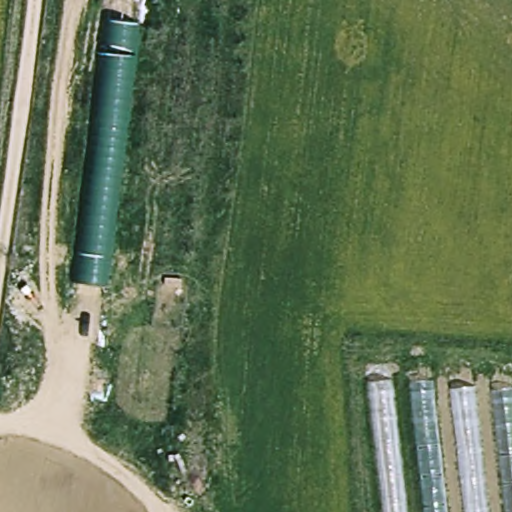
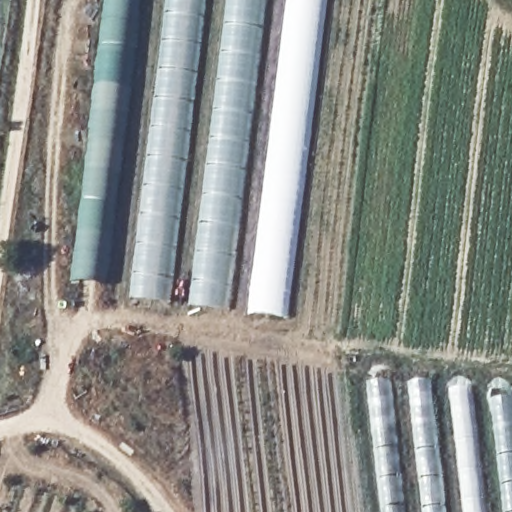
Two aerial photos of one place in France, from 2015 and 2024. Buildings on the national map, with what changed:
new [(166,0),(207,0),(169,304),(128,298),(166,0)]
new [(227,0),(268,0),(228,311),(188,307),(227,0)]
new [(287,0),(328,0),(287,319),(248,315),(287,0)]
unchanged [(102,286),(70,281),(104,12),(137,13),(102,286)]
unchanged [(512,397),(512,512),(385,512),(373,377),(512,397)]

